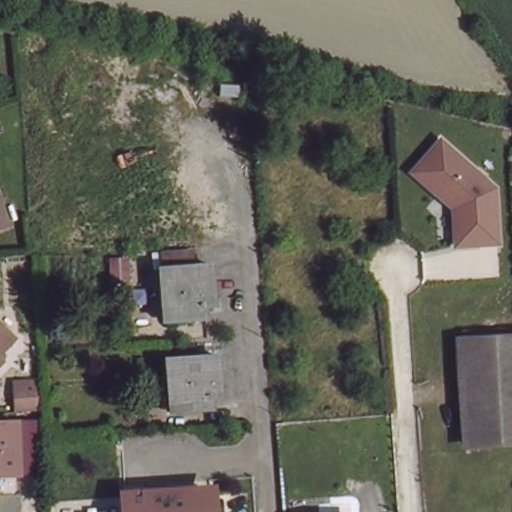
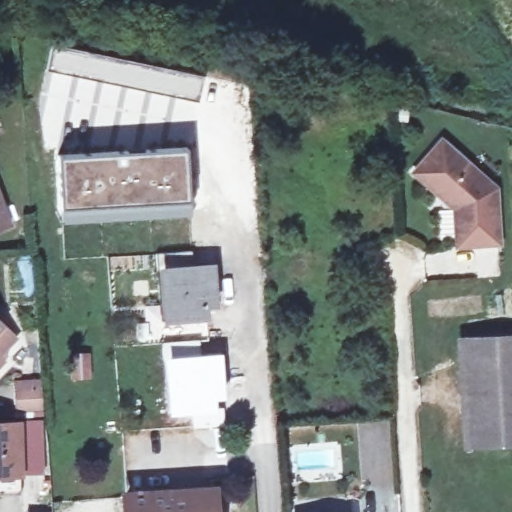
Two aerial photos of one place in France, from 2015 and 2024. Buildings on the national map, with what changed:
new [(45,71),(50,44),(204,75),(198,101),(45,71)]
demolished [(156,124),(139,125),(141,138),(110,138),(106,86),(153,84),(156,124)]
demolished [(512,150),(484,144),(489,123),(512,129),(512,150)]
unchanged [(439,137),(498,188),(501,244),(453,249),(449,212),(408,172),(439,137)]
new [(190,213),(61,221),(58,156),(184,149),(190,213)]
demolished [(205,214),(194,214),(194,229),(154,232),(154,177),(185,176),(203,176),(205,214)]
unchanged [(8,219),(0,221),(0,198),(8,219)]
unchanged [(213,310),(201,310),(203,321),(163,323),(159,270),(211,267),(213,310)]
unchanged [(11,336),(0,348),(0,326),(11,336)]
unchanged [(456,340),(512,337),(512,443),(459,444),(456,340)]
new [(91,351),(93,379),(68,380),(67,353),(91,351)]
unchanged [(223,393),(211,394),(211,409),(168,409),(166,357),(220,353),(223,393)]
unchanged [(1,360),(0,361),(0,358),(1,360)]
unchanged [(29,419),(4,420),(4,407),(2,396),(28,394),(29,419)]
unchanged [(8,484),(0,484),(0,429),(5,429),(8,484)]
unchanged [(210,512),(124,512),(122,492),(208,485),(210,512)]
new [(51,510),(52,512),(26,512),(25,512),(51,510)]

